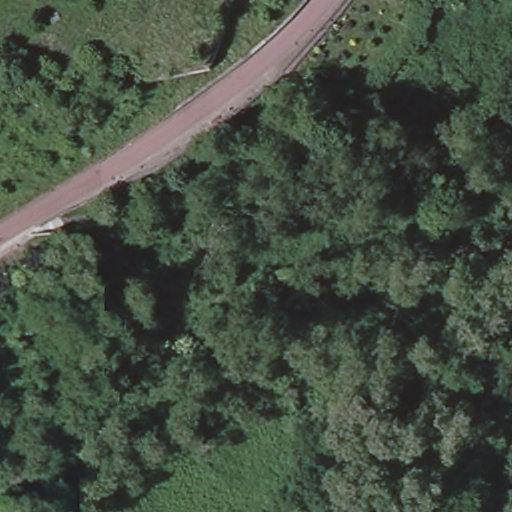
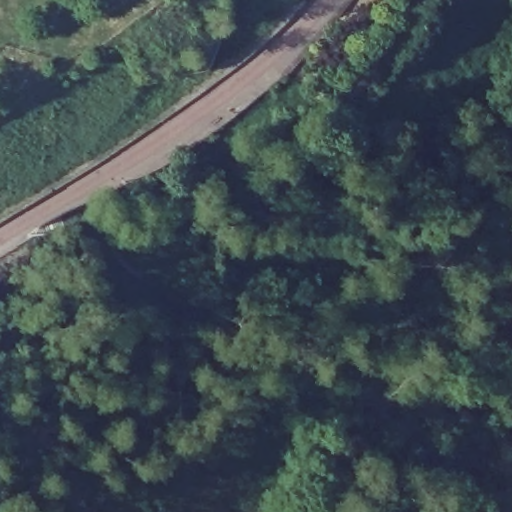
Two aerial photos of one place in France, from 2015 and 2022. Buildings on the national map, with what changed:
[]

